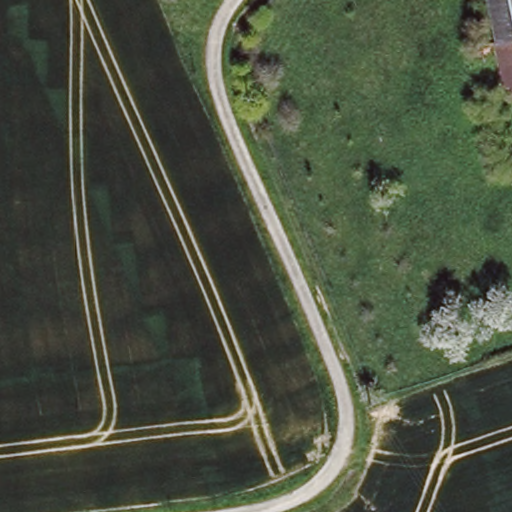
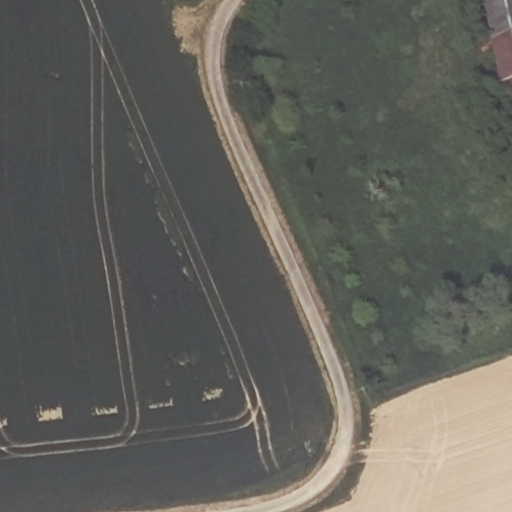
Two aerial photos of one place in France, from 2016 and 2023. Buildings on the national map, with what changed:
unchanged [(491,49),(483,0),(512,0),(512,47),(491,49)]
unchanged [(504,106),(502,90),(485,91),(479,51),(491,49),(512,47),(512,104),(504,106)]

